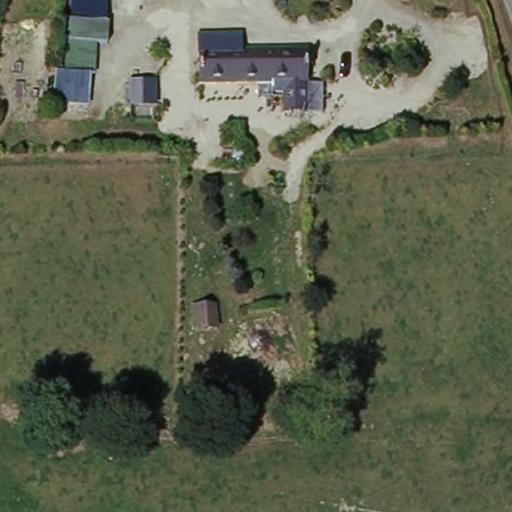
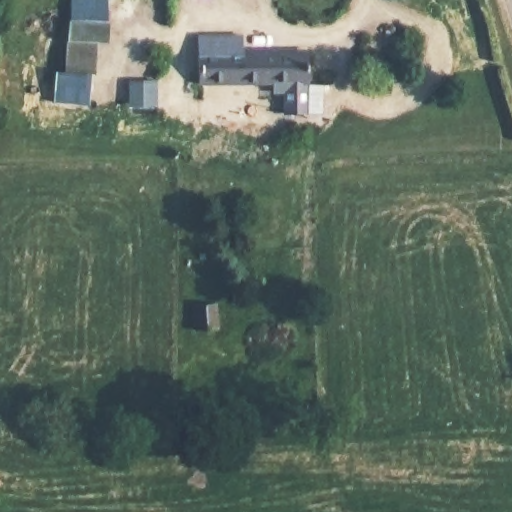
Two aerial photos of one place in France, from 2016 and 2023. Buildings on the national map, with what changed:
unchanged [(106,45),(96,44),(95,105),(55,104),(56,71),(67,73),(69,6),(107,6),(106,45)]
unchanged [(308,52),(306,80),(270,81),(242,81),(199,80),(200,36),(221,37),(221,50),(253,51),(308,52)]
unchanged [(306,80),(305,124),(282,123),(281,101),(270,100),(270,81),(306,80)]
unchanged [(125,94),(150,95),(148,115),(124,114),(125,94)]
unchanged [(219,305),(219,328),(197,328),(197,305),(219,305)]

